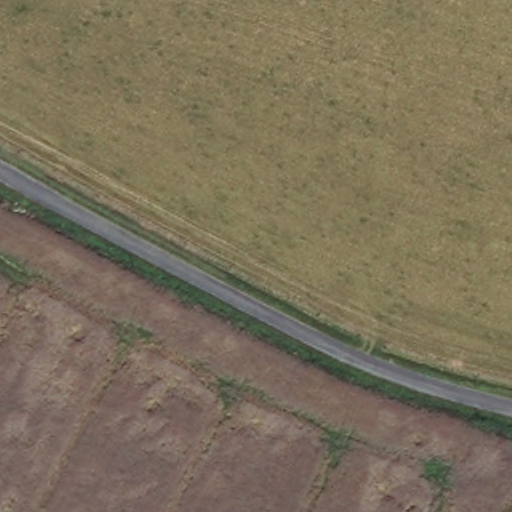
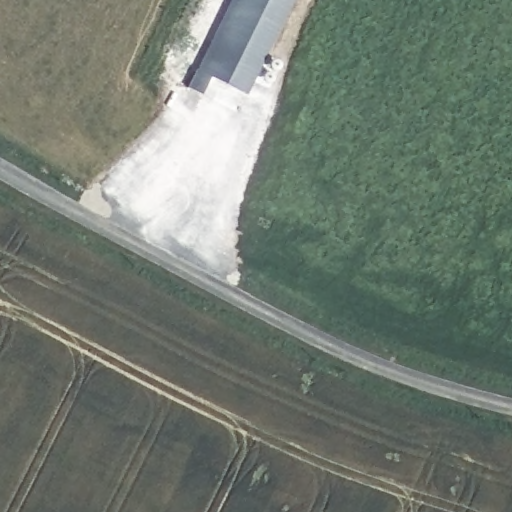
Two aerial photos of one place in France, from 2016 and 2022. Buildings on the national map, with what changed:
new [(247,95),(210,77),(200,94),(186,86),(230,0),(294,0),(247,95)]

